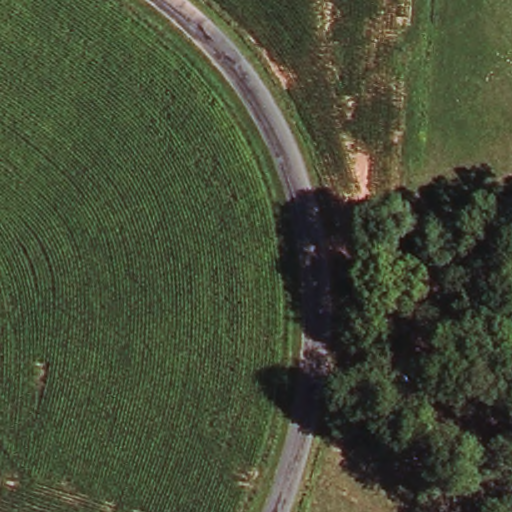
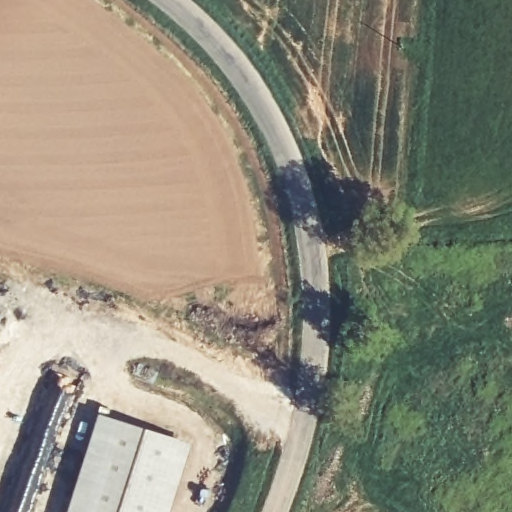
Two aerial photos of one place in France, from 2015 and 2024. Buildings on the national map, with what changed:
new [(98,415),(190,444),(168,512),(67,512),(98,415)]

